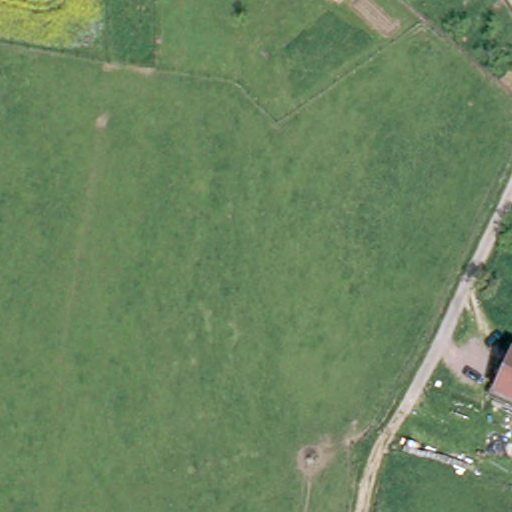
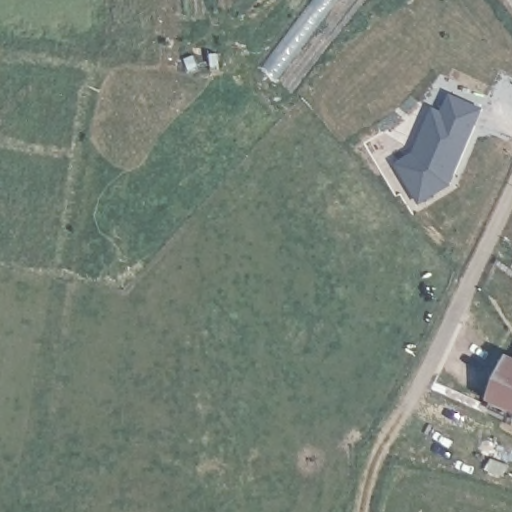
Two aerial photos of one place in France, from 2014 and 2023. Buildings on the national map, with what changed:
new [(424,201),(420,197),(399,163),(417,151),(435,106),(445,111),(452,93),(484,106),(457,173),(453,182),(424,201)]
unchanged [(512,363),(512,406),(494,397),(512,363)]

